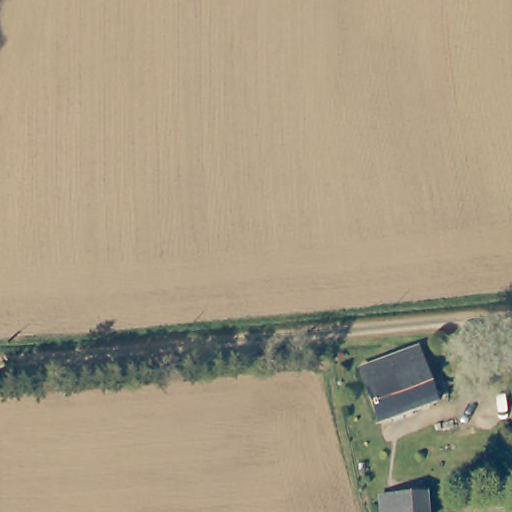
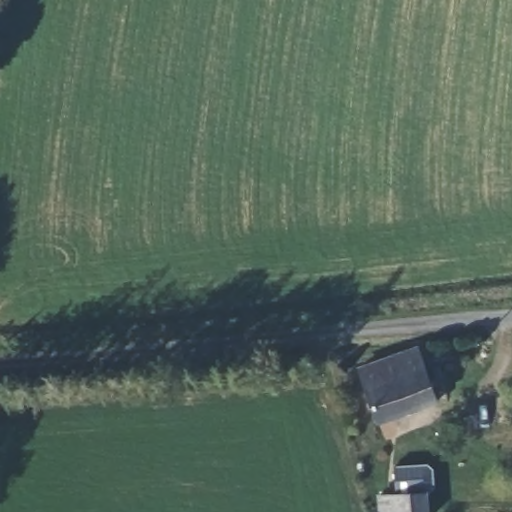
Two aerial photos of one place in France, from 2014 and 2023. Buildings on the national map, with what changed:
unchanged [(379,431),(362,379),(423,358),(441,411),(379,431)]
unchanged [(429,489),(431,512),(384,512),(382,493),(429,489)]

